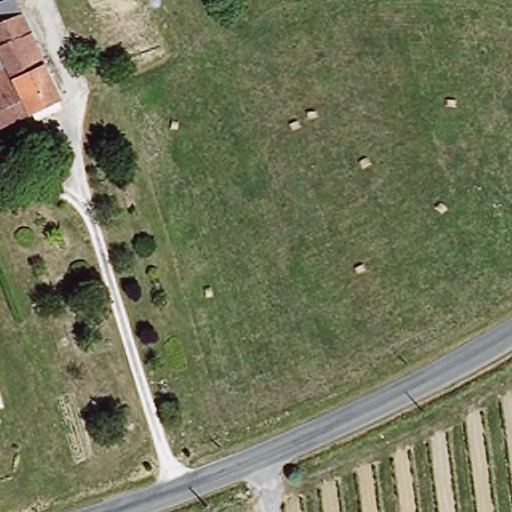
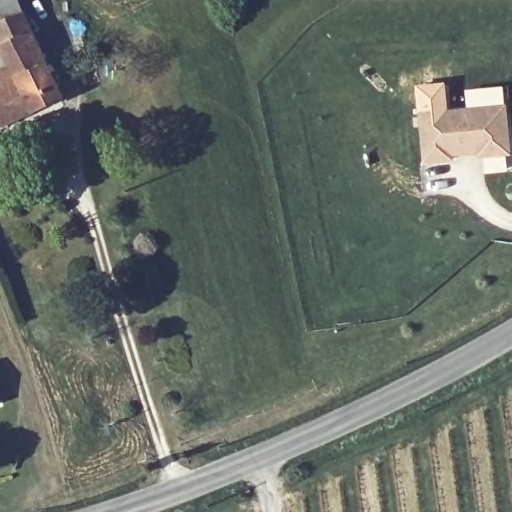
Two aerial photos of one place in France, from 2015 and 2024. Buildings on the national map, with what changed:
unchanged [(0,128),(0,0),(20,0),(65,97),(0,128)]
new [(507,105),(511,155),(478,157),(477,154),(453,156),(453,161),(422,164),(417,114),(507,105)]

